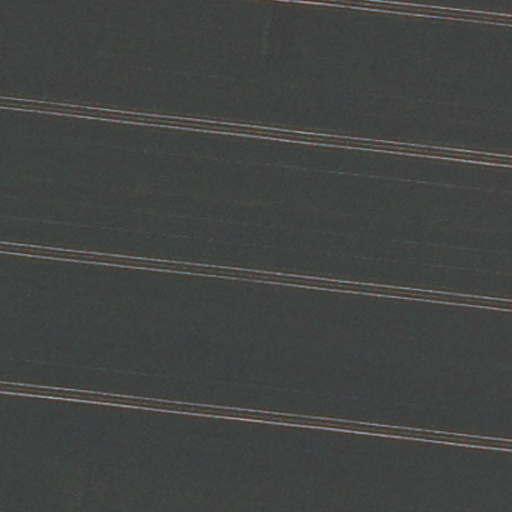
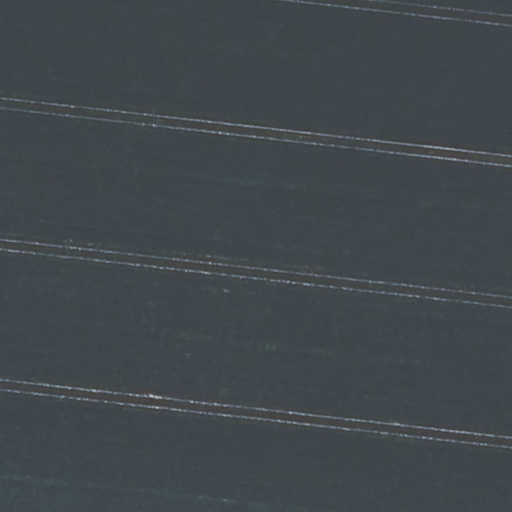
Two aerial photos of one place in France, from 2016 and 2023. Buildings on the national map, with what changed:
[]

